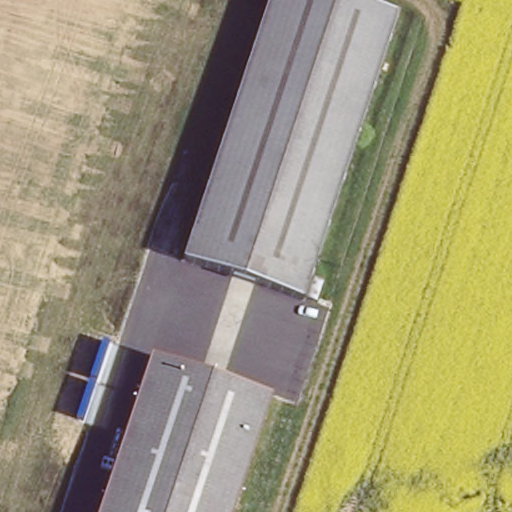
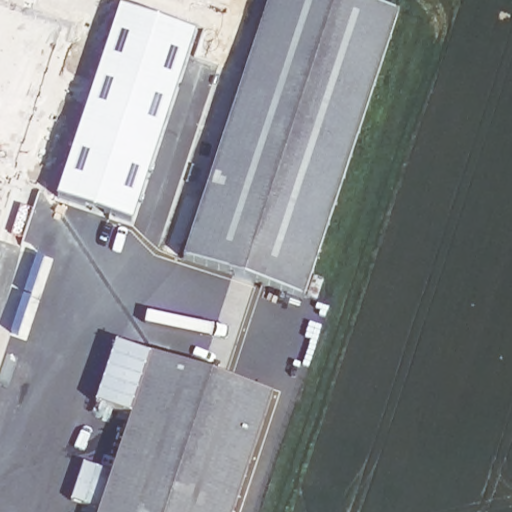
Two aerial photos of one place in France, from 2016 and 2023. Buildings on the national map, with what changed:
unchanged [(374,0),(402,9),(309,298),(186,258),(269,0),(374,0)]
new [(119,8),(195,33),(132,225),(56,199),(119,8)]
unchanged [(155,353),(278,392),(239,512),(104,512),(155,353)]

